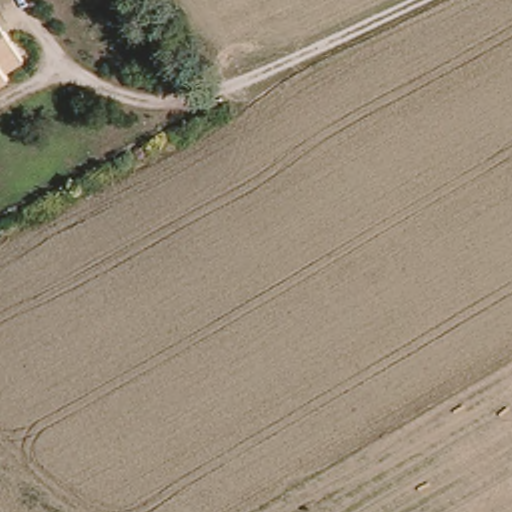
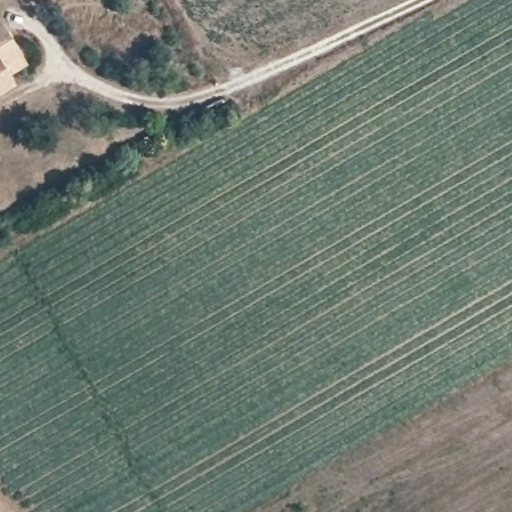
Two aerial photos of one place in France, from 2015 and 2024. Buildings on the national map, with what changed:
unchanged [(23,66),(5,77),(8,84),(0,89),(0,28),(23,66)]

